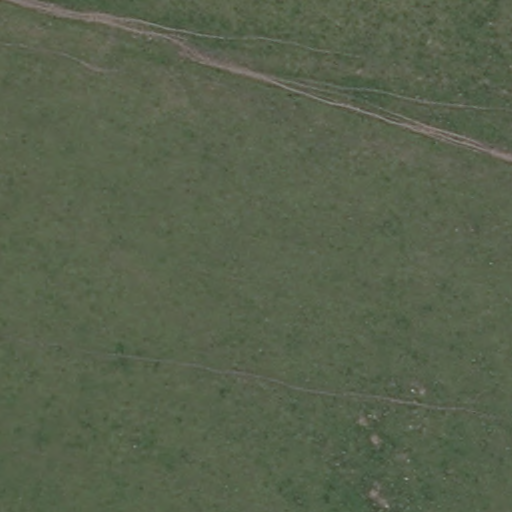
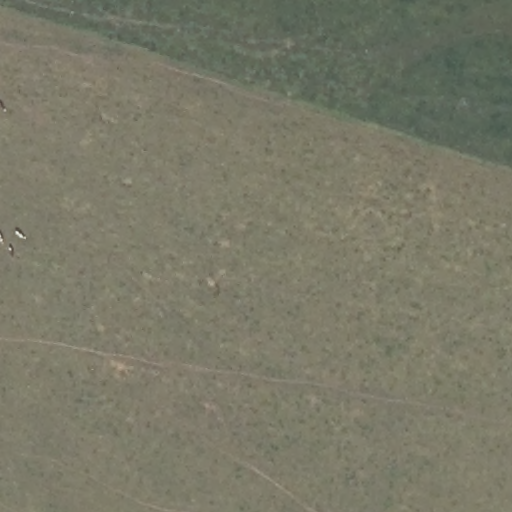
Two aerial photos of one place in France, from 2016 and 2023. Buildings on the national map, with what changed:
[]

